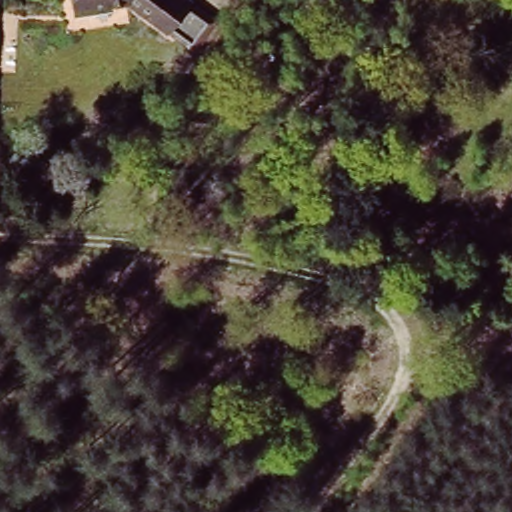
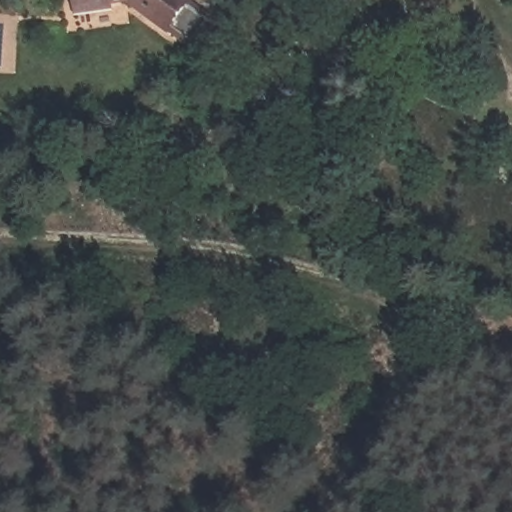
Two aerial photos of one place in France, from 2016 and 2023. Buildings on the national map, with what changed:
unchanged [(176,27),(171,33),(132,7),(73,13),(72,0),(193,0),(191,4),(221,23),(204,46),(176,27)]

